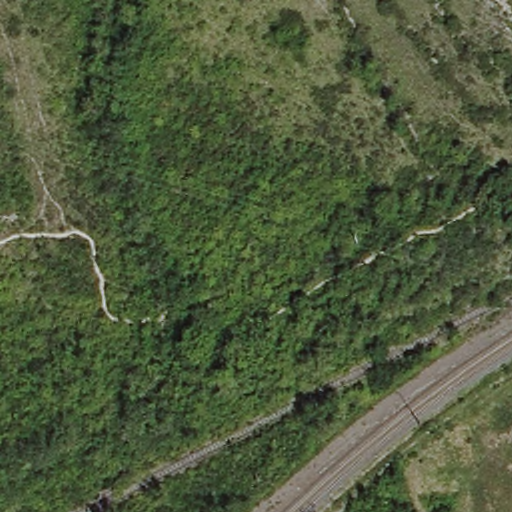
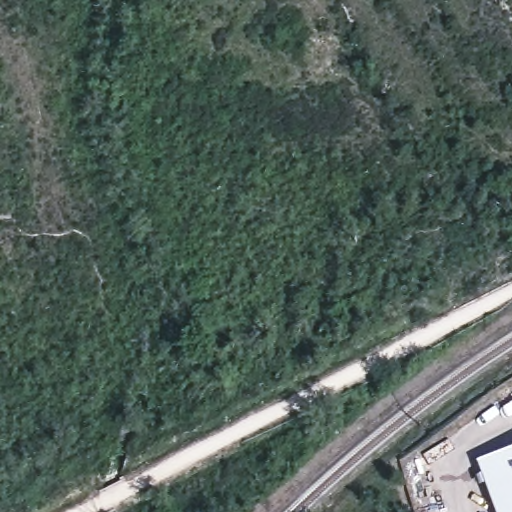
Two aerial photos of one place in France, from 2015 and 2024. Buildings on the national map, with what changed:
new [(512,449),(512,512),(495,512),(477,462),(512,449)]

